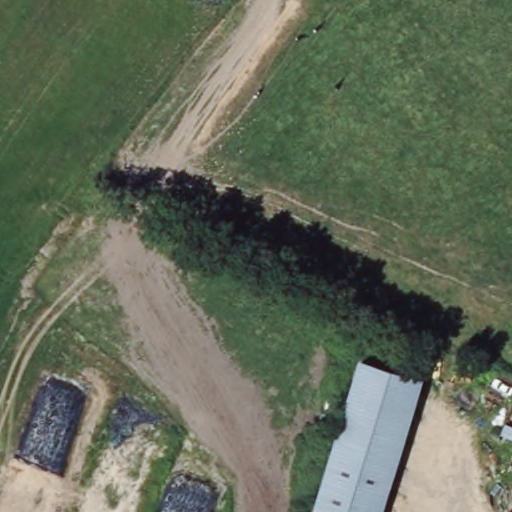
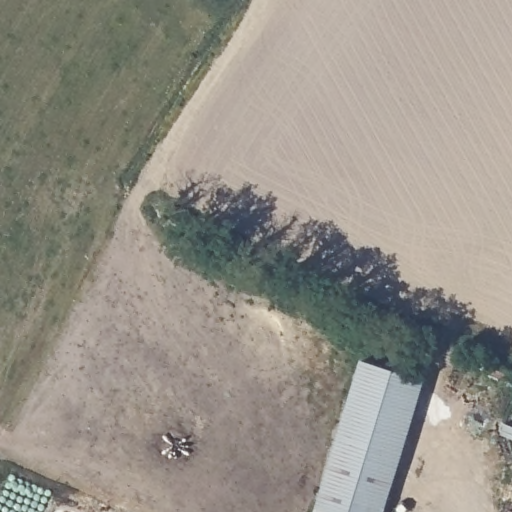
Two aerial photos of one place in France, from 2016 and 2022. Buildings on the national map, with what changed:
unchanged [(425,387),(375,512),(306,512),(370,358),(419,383),(425,387)]

